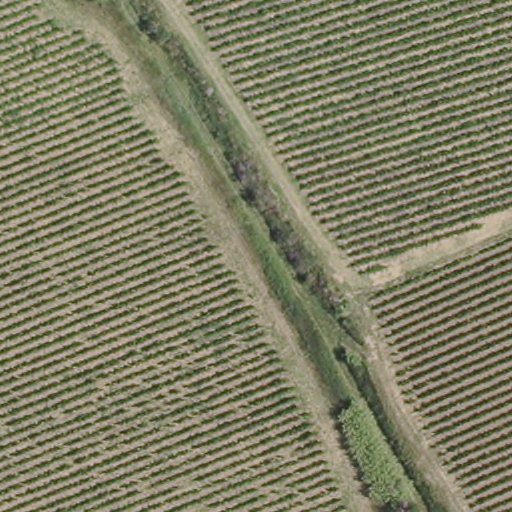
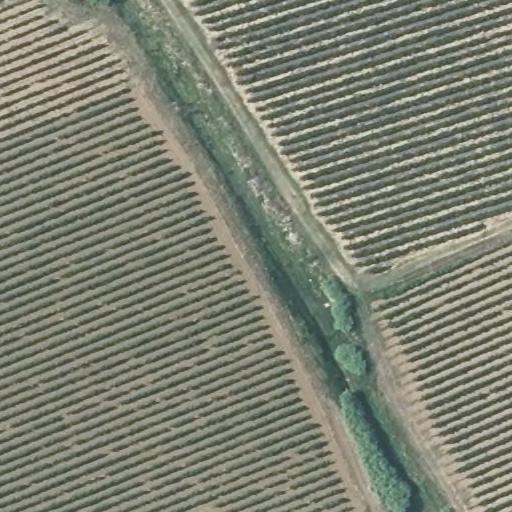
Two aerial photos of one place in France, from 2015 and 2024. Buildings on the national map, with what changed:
unchanged [(66,0),(76,0),(67,2),(66,0)]

